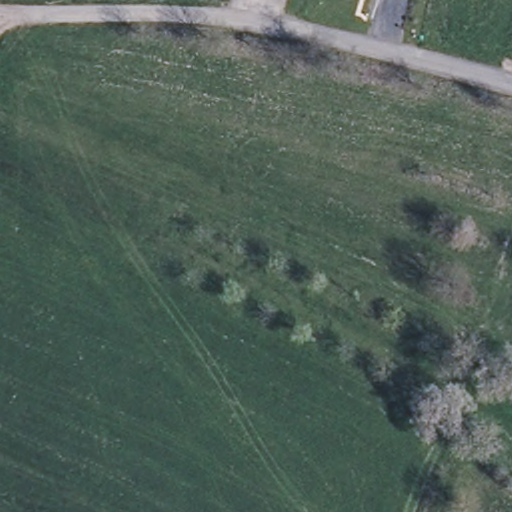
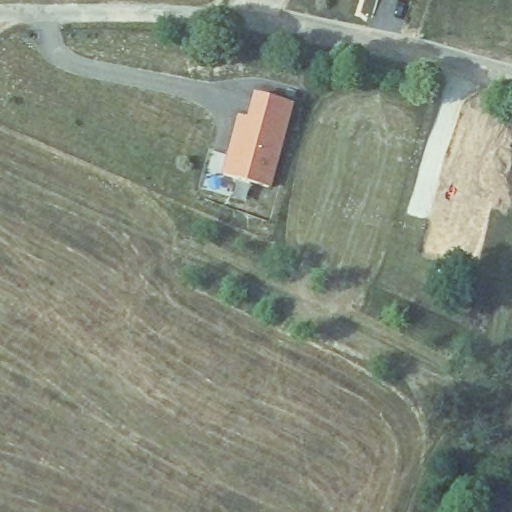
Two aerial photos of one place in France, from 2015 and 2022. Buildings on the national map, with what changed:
new [(230,153),(235,134),(235,133),(239,116),(248,119),(255,94),(290,104),(268,187),(223,174),(230,153)]

